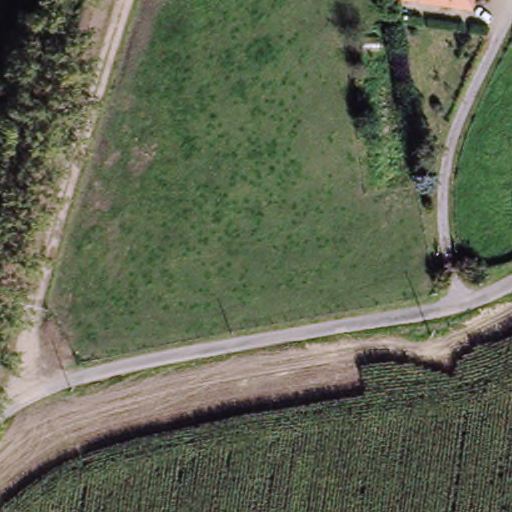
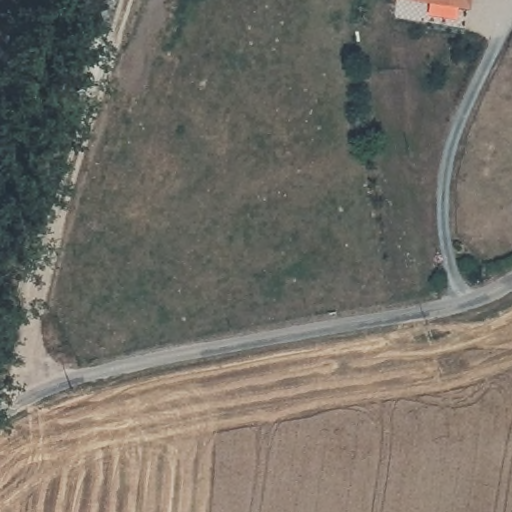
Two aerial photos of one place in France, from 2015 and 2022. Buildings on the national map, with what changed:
unchanged [(439,0),(467,0),(466,5),(439,0)]

